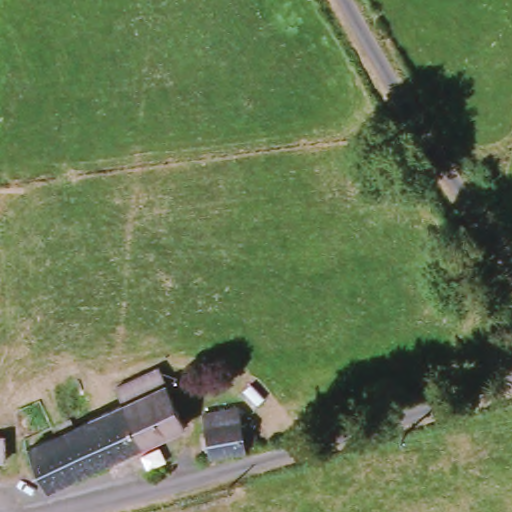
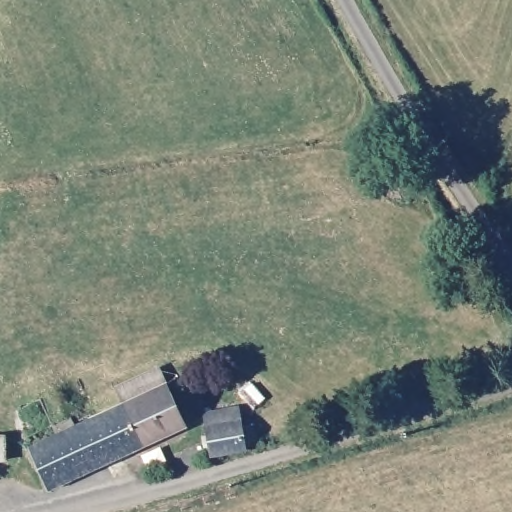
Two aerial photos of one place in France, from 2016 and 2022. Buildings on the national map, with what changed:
unchanged [(186,446),(45,491),(30,447),(127,417),(123,404),(122,397),(167,382),(170,394),(186,446)]
unchanged [(235,404),(240,420),(247,451),(208,458),(207,449),(199,447),(197,438),(205,438),(202,425),(199,414),(235,404)]
unchanged [(1,439),(2,459),(0,460),(0,439),(1,439)]

